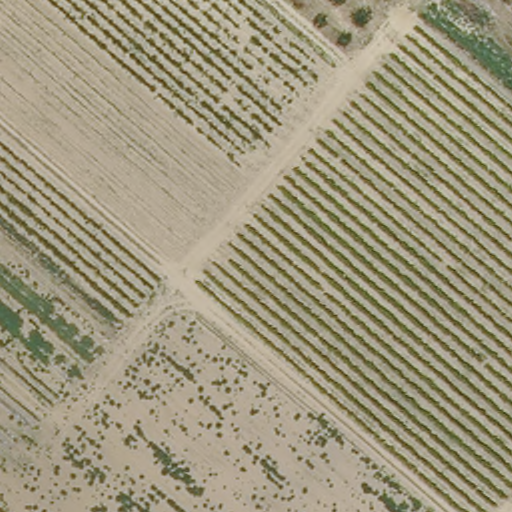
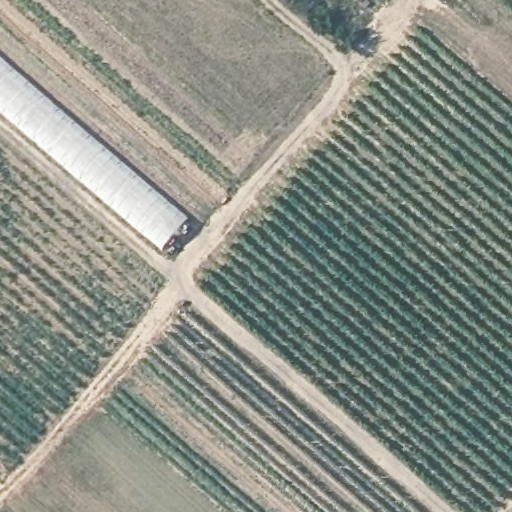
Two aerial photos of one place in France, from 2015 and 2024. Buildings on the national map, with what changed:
new [(165,249),(0,105),(0,56),(189,218),(165,249)]

